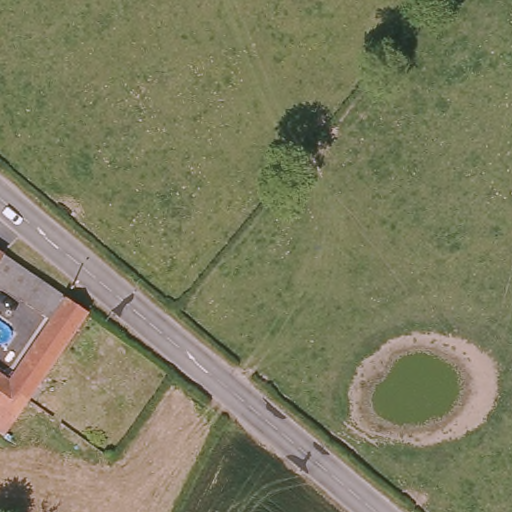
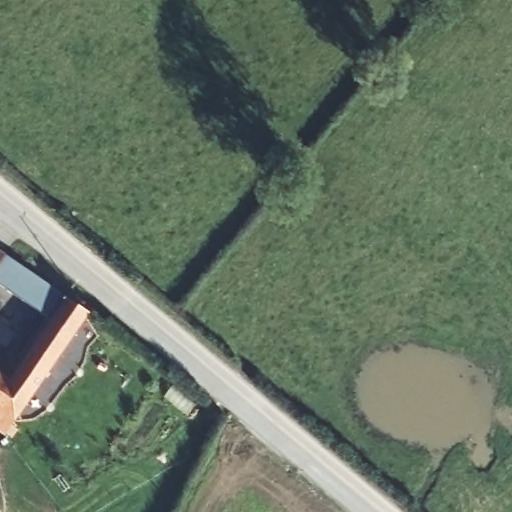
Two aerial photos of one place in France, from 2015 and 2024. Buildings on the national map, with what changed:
unchanged [(6,256),(91,314),(30,402),(25,408),(6,436),(0,431),(0,372),(11,380),(52,322),(0,285),(0,251),(6,256)]

